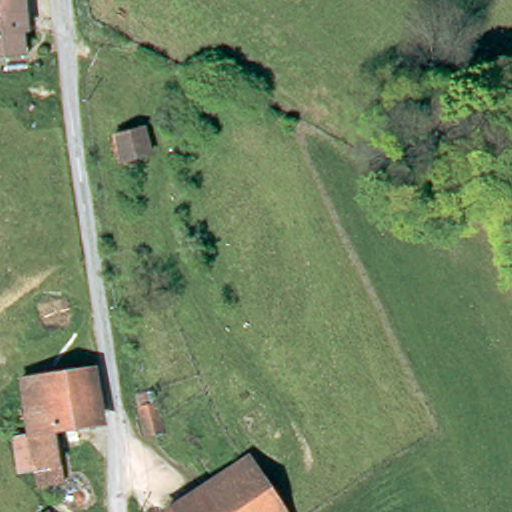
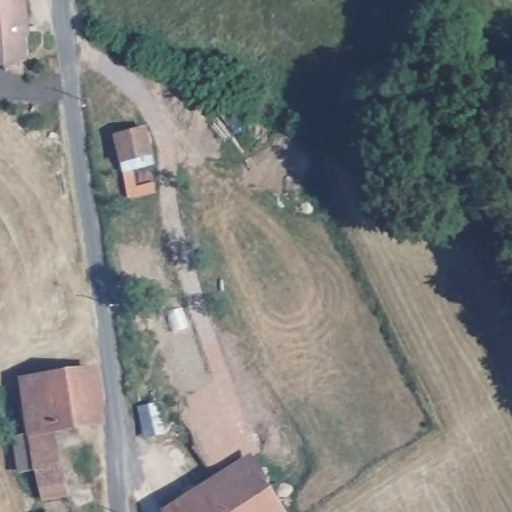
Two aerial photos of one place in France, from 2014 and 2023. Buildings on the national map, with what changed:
unchanged [(0,54),(0,0),(18,0),(22,52),(0,54)]
unchanged [(108,127),(145,122),(151,152),(118,159),(108,127)]
unchanged [(88,374),(93,423),(54,426),(49,376),(88,374)]
unchanged [(56,460),(33,462),(26,377),(49,376),(54,426),(54,434),(56,460)]
unchanged [(238,461),(248,455),(283,512),(258,512),(229,467),(238,461)]
unchanged [(229,467),(258,512),(172,512),(168,505),(229,467)]
unchanged [(42,512),(43,511),(45,512),(42,512)]

